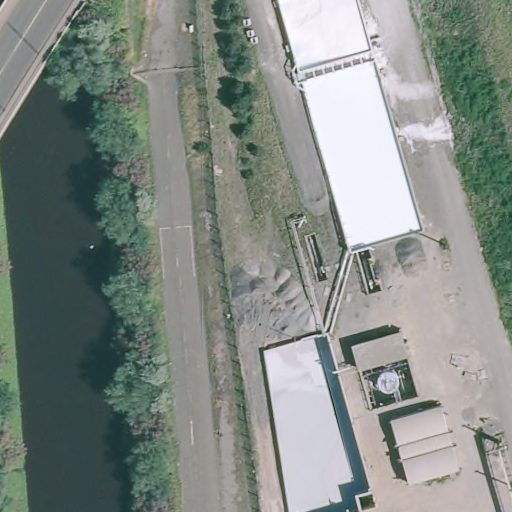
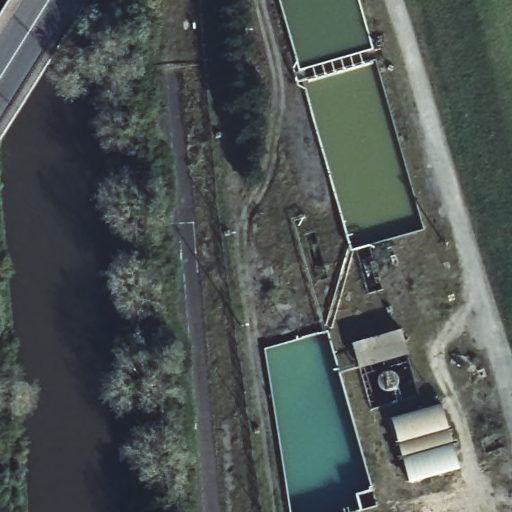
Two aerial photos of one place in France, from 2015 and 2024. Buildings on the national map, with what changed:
unchanged [(356,368),(349,346),(399,328),(406,354),(356,368)]
unchanged [(406,481),(389,418),(440,402),(457,469),(406,481)]

